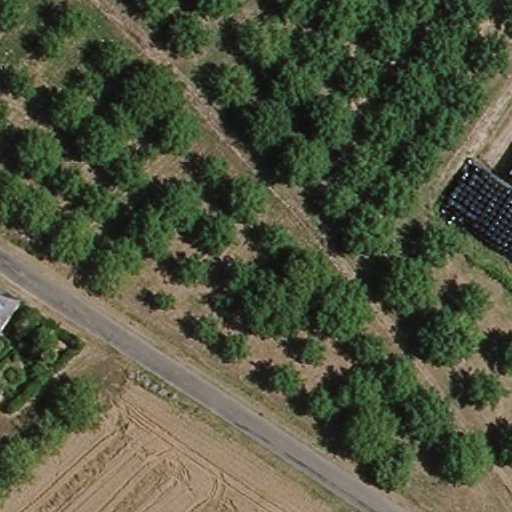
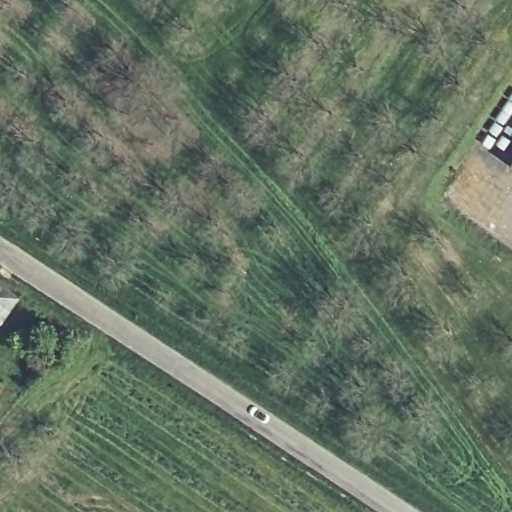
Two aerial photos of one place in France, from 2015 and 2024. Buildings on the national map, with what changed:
unchanged [(26,297),(9,322),(3,317),(0,321),(0,278),(26,297)]
unchanged [(8,387),(0,398),(0,381),(8,387)]

